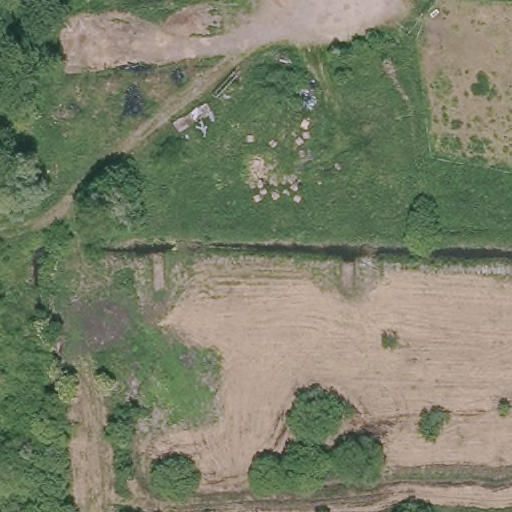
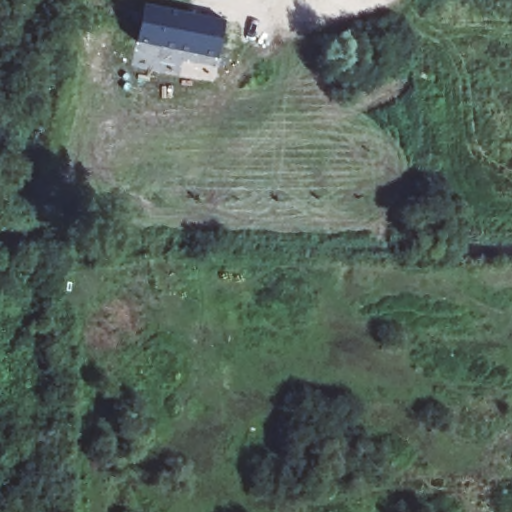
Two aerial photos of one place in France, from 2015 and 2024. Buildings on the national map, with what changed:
new [(219,58),(137,42),(145,3),(225,20),(219,58)]

